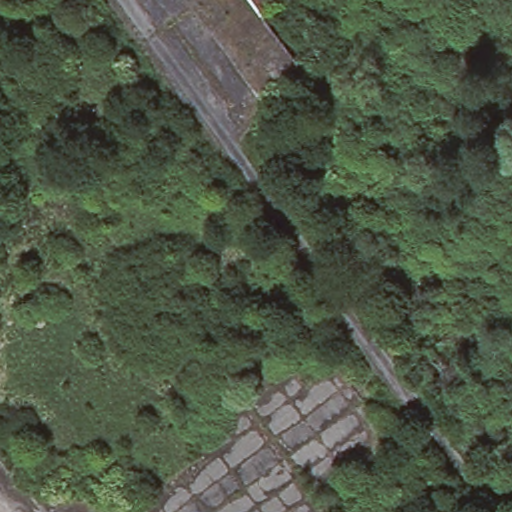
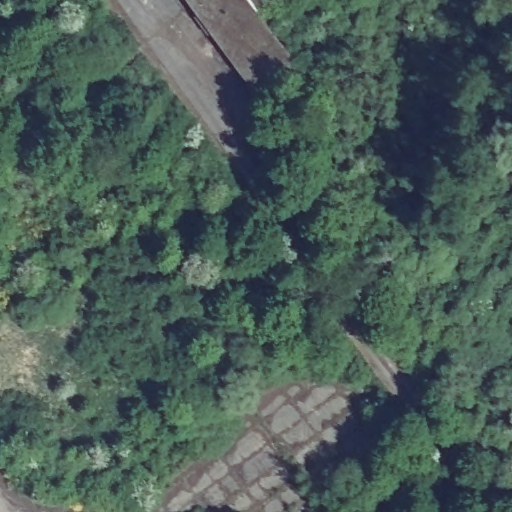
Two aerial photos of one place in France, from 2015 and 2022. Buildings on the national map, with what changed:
unchanged [(299,62),(258,94),(188,0),(267,0),(258,7),(299,62)]
unchanged [(0,176),(0,175),(1,176),(0,176)]

